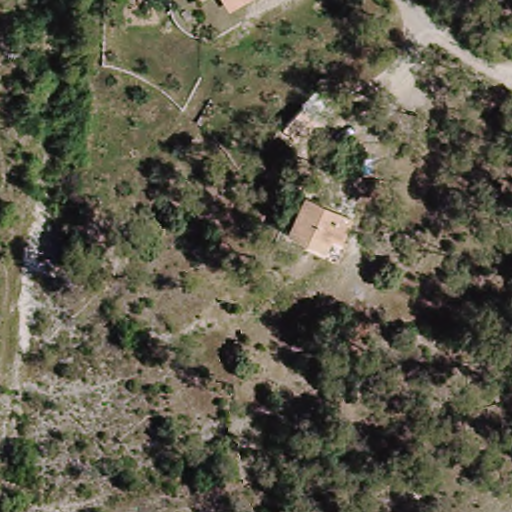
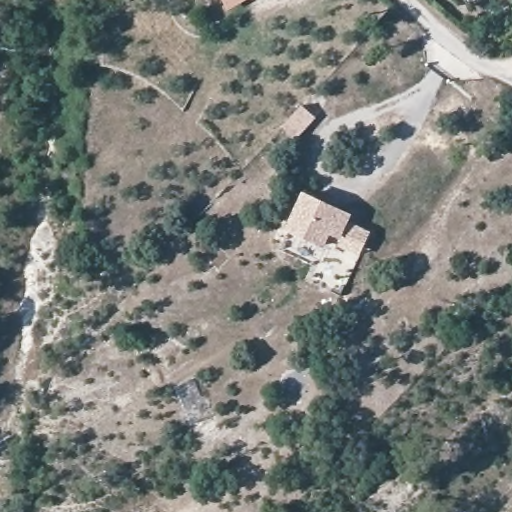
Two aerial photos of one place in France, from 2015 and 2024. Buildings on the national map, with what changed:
unchanged [(230,5),(227,0),(238,0),(230,5)]
unchanged [(285,231),(291,220),(309,186),(346,203),(335,225),(324,247),(285,231)]

